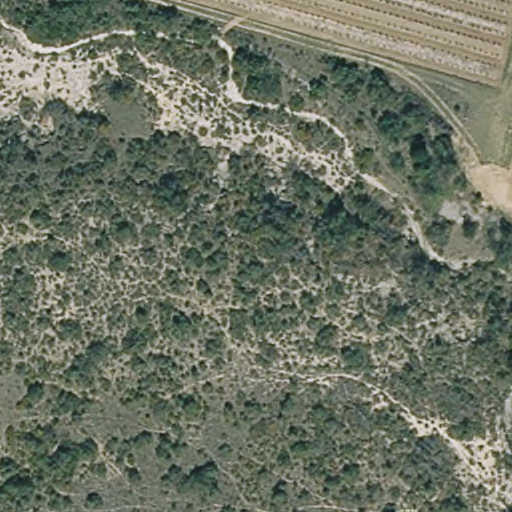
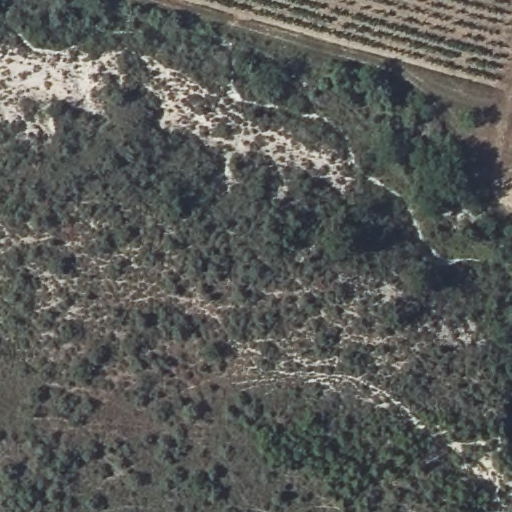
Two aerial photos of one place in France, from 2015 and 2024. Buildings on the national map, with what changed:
[]

